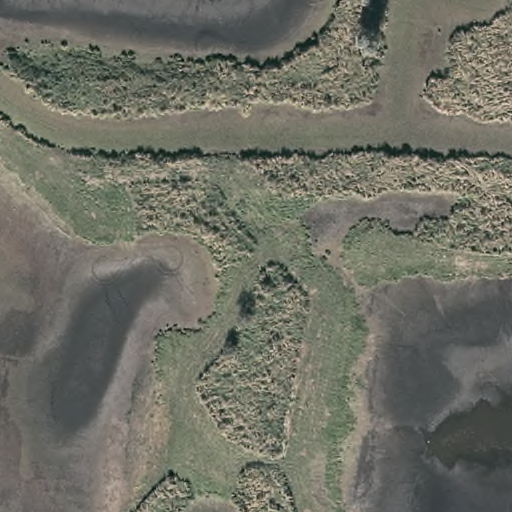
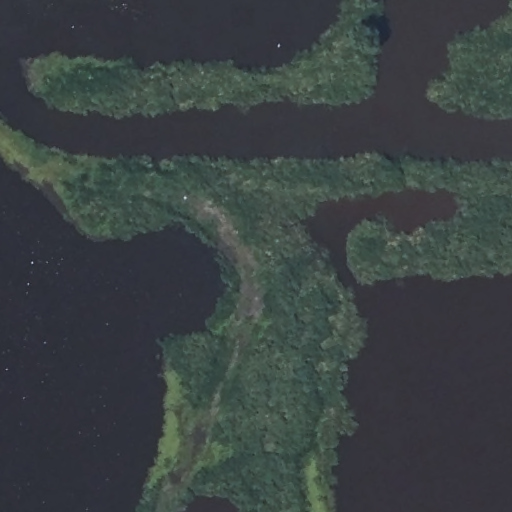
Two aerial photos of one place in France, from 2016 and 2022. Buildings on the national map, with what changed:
[]

